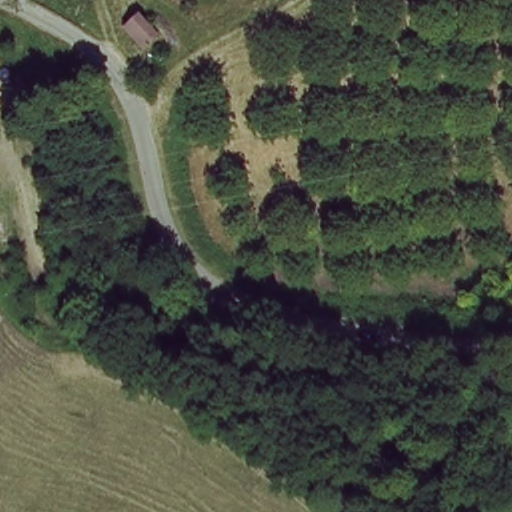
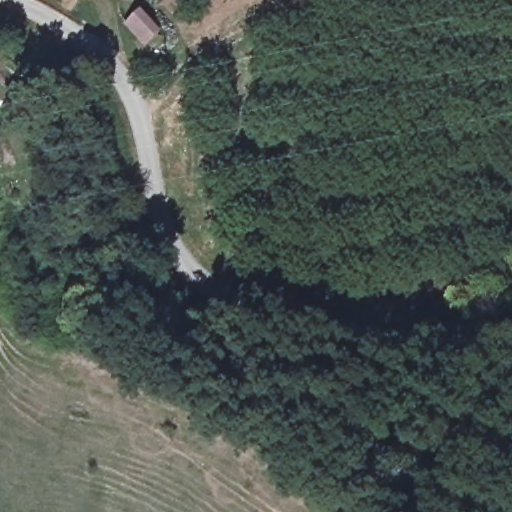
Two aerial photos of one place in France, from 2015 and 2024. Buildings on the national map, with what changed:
unchanged [(147,48),(130,31),(143,17),(161,35),(147,48)]

